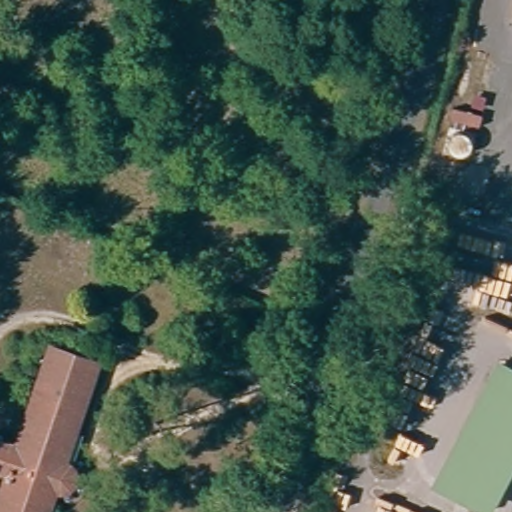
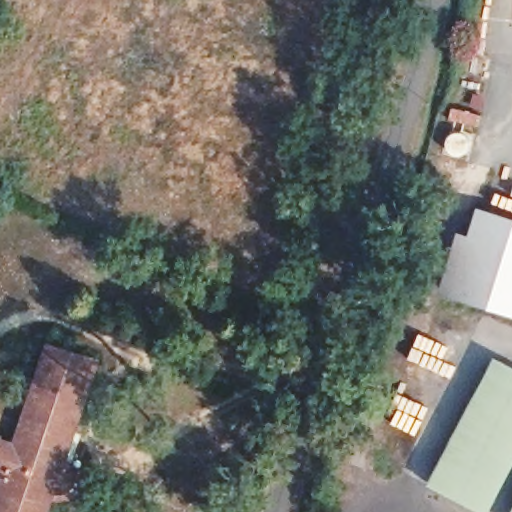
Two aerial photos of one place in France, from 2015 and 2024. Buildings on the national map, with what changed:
new [(471,235),(479,206),(512,216),(512,314),(441,291),(459,231),(471,235)]
unchanged [(79,478),(77,487),(71,496),(66,498),(57,498),(52,512),(0,512),(0,480),(1,478),(0,478),(0,440),(13,443),(44,343),(101,363),(66,461),(76,469),(79,478)]
unchanged [(431,482),(497,357),(512,365),(512,467),(488,512),(486,512),(431,482)]

